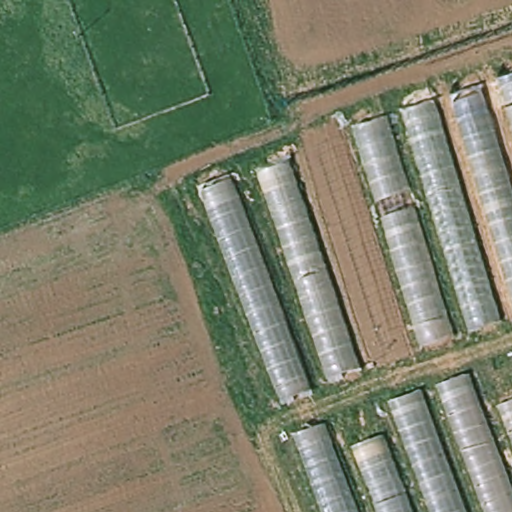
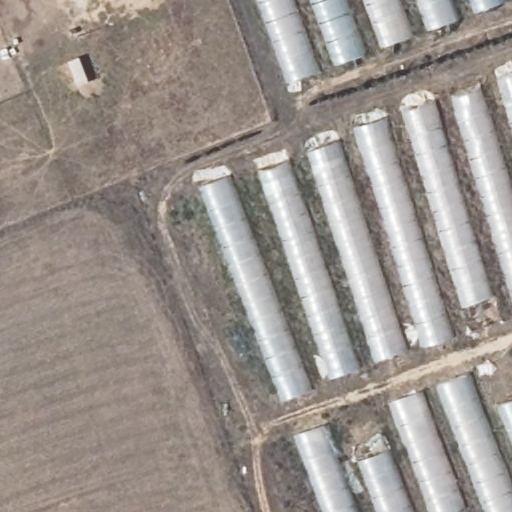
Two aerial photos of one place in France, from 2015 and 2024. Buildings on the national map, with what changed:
new [(258,0),(512,0),(289,82),(258,0)]
unchanged [(354,123),(512,72),(512,317),(422,348),(354,123)]
new [(376,362),(306,155),(338,145),(406,350),(376,362)]
unchanged [(289,154),(362,368),(282,402),(200,185),(289,154)]
unchanged [(335,450),(397,426),(388,400),(469,370),(482,408),(512,397),(512,512),(323,512),(293,430),(325,419),(335,450)]

